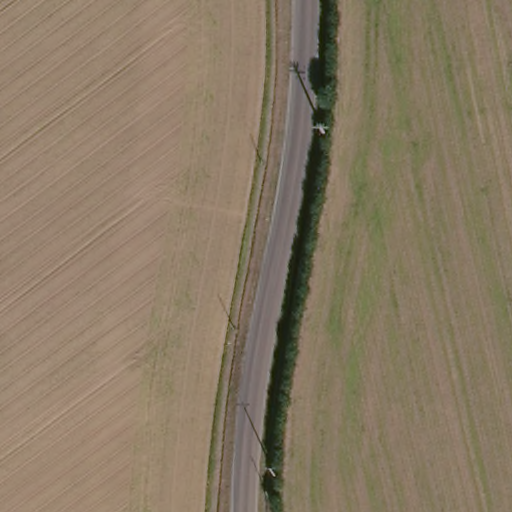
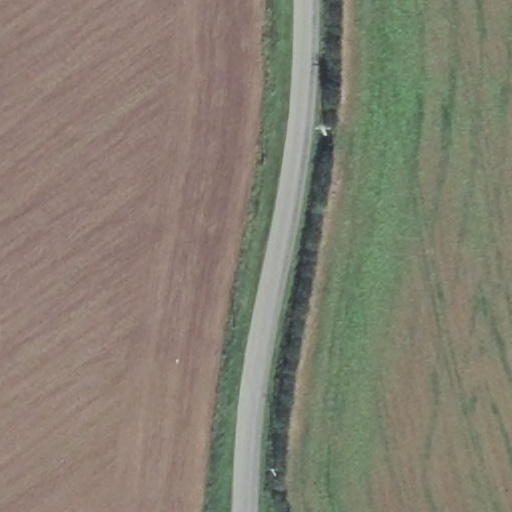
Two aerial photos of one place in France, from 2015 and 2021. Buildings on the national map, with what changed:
[]

